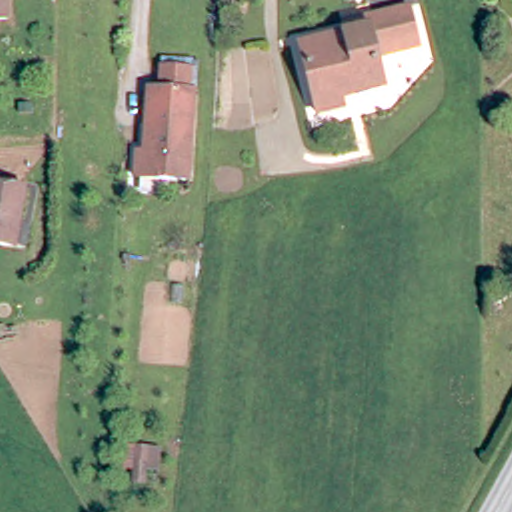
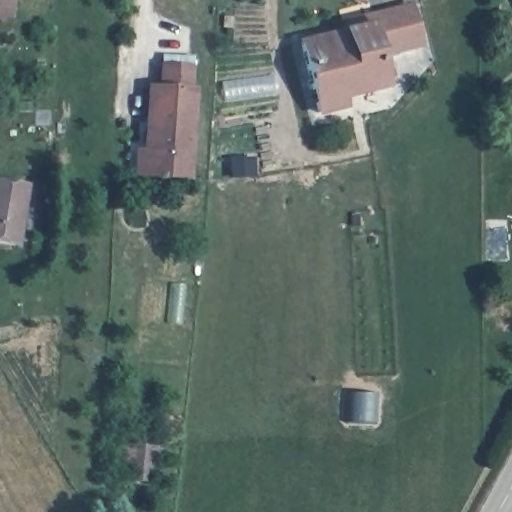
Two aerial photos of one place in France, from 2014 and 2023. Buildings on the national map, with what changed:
unchanged [(0,15),(0,0),(9,0),(8,15),(0,15)]
unchanged [(322,110),(303,40),(349,26),(346,19),(369,11),(405,0),(414,0),(425,40),(405,45),(382,52),(391,83),(364,91),(349,95),(351,102),(322,110)]
unchanged [(155,85),(202,89),(192,177),(142,174),(145,149),(150,150),(155,85)]
unchanged [(17,215),(12,244),(0,242),(0,180),(27,184),(22,216),(17,215)]

